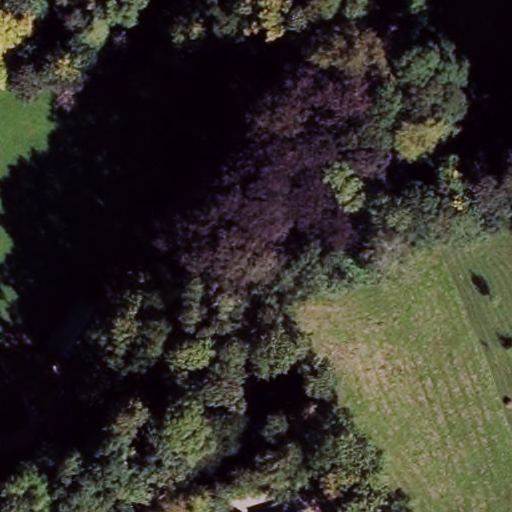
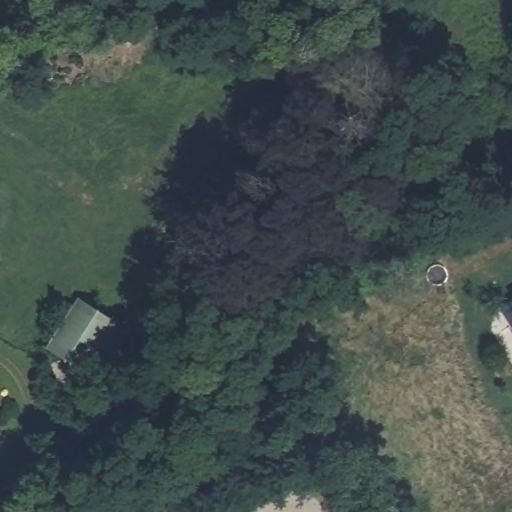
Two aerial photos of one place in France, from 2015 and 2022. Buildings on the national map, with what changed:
unchanged [(79,300),(115,322),(84,370),(44,351),(79,300)]
new [(512,302),(512,330),(500,310),(512,302)]
unchanged [(90,474),(97,497),(79,502),(73,483),(90,474)]
unchanged [(230,507),(236,512),(227,512),(230,507)]

